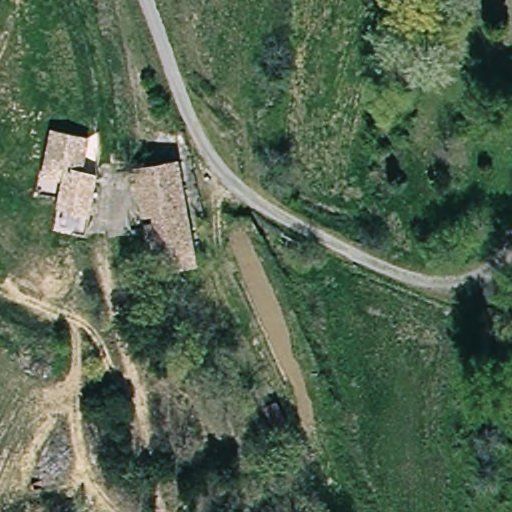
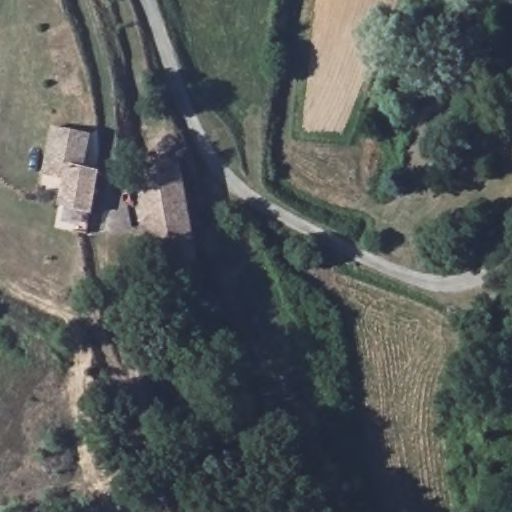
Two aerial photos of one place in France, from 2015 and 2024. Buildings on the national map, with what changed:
unchanged [(82,168),(99,173),(93,212),(60,203),(67,165),(47,160),(52,125),(92,134),(82,168)]
unchanged [(195,264),(152,272),(142,228),(139,217),(130,166),(175,157),(185,208),(190,234),(196,263),(195,264)]

